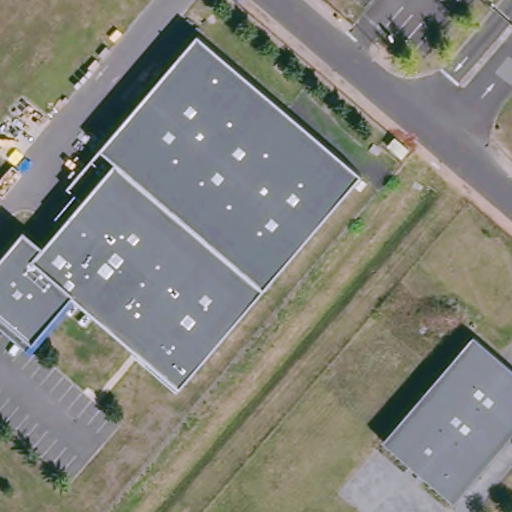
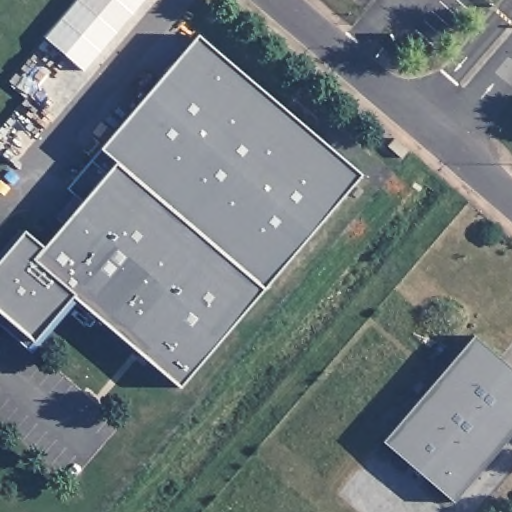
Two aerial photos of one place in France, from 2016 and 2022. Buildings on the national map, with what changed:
new [(141,0),(82,70),(43,36),(74,0),(141,0)]
unchanged [(97,186),(82,175),(100,151),(199,36),(363,175),(180,388),(73,295),(33,342),(27,348),(0,326),(0,262),(25,232),(42,247),(97,186)]
unchanged [(403,157),(389,145),(396,137),(408,148),(410,149),(403,157)]
unchanged [(452,503),(381,442),(472,336),(512,371),(512,433),(452,503)]

